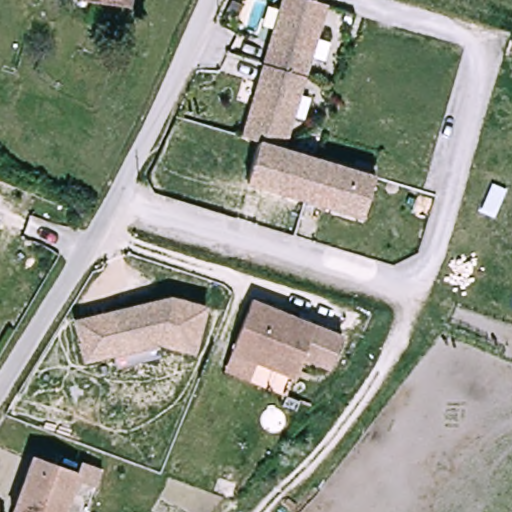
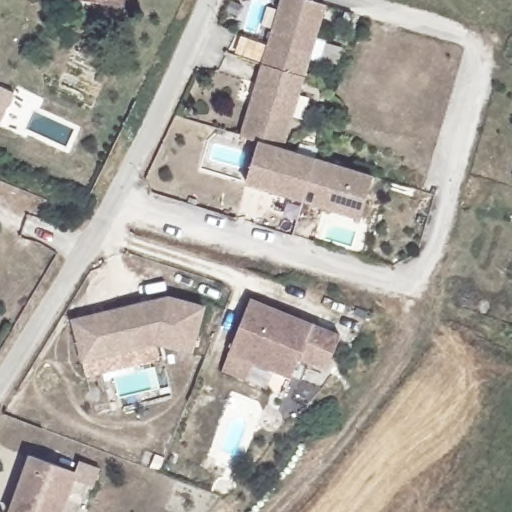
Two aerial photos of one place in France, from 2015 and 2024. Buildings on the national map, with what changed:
unchanged [(88,0),(126,0),(125,6),(88,0)]
unchanged [(284,151),(375,177),(363,219),(247,185),(260,143),(242,137),(283,0),(309,0),(327,6),(284,151)]
new [(0,87),(12,91),(1,122),(0,122),(0,87)]
unchanged [(112,310),(114,317),(128,315),(127,306),(174,296),(208,306),(195,351),(160,340),(82,317),(112,310)]
unchanged [(255,302),(345,334),(334,367),(306,358),(298,378),(236,356),(255,302)]
unchanged [(86,358),(77,318),(82,317),(160,340),(86,358)]
unchanged [(230,374),(236,356),(298,378),(292,396),(230,374)]
unchanged [(23,464),(68,480),(72,468),(94,476),(87,495),(65,487),(56,512),(6,512),(23,464)]

